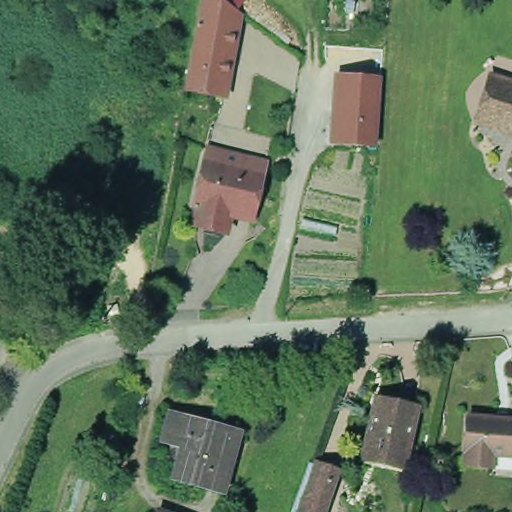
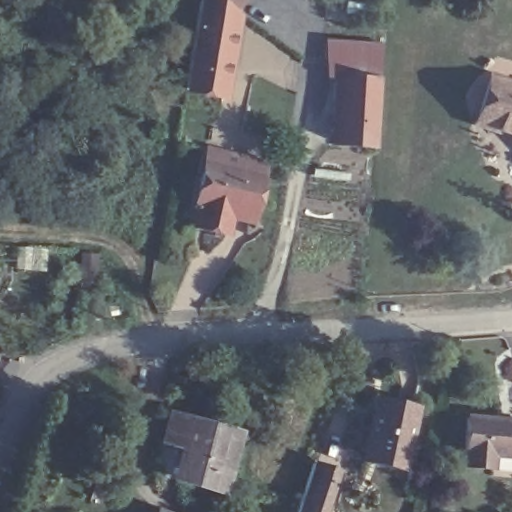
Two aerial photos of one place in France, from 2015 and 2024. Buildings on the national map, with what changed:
unchanged [(223,97),(186,91),(203,0),(218,0),(238,14),(223,97)]
new [(218,0),(245,0),(236,13),(218,0)]
new [(383,43),(380,77),(378,78),(326,78),(323,39),(383,43)]
unchanged [(326,78),(378,78),(374,150),(324,146),(326,78)]
unchanged [(509,140),(506,143),(475,133),(471,131),(486,87),(493,90),(512,96),(512,144),(509,140)]
unchanged [(191,209),(194,198),(190,197),(203,150),(205,141),(228,146),(259,155),(257,164),(245,211),(224,206),(221,217),(219,222),(189,214),(191,209)]
unchanged [(367,454),(368,449),(376,410),(379,397),(384,398),(419,405),(409,452),(406,464),(367,454)]
unchanged [(243,435),(227,490),(181,477),(191,445),(171,439),(177,416),(243,435)]
unchanged [(468,466),(468,461),(471,418),(512,420),(512,456),(498,455),(497,463),(497,468),(468,466)]
unchanged [(341,465),(324,512),(295,512),(313,458),(341,465)]
unchanged [(183,512),(154,512),(157,503),(183,512)]

